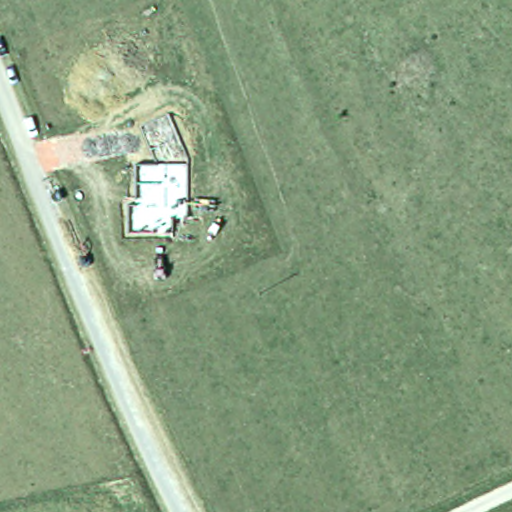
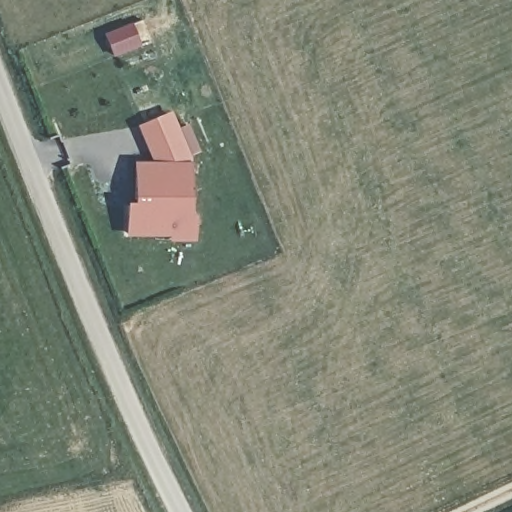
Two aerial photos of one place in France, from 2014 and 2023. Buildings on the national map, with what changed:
new [(191,159),(190,216),(196,216),(195,240),(169,240),(170,235),(123,235),(124,202),(134,202),(133,161),(150,162),(135,127),(170,110),(191,159)]

